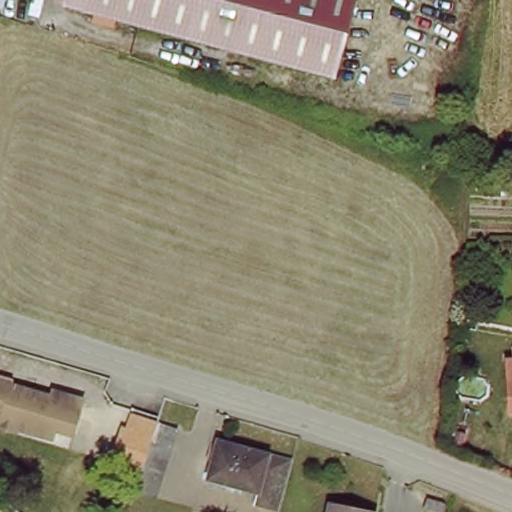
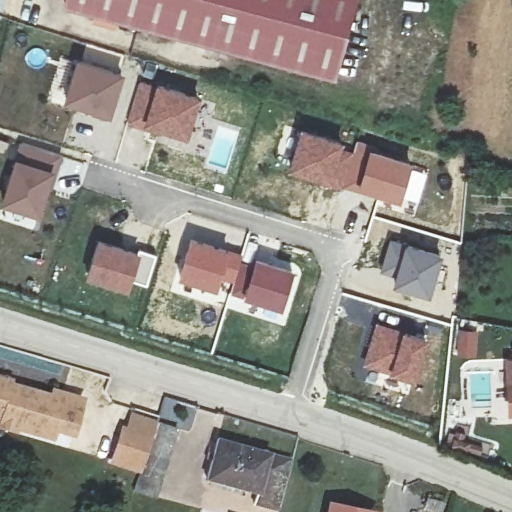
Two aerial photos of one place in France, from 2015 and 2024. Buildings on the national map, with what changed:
unchanged [(325,81),(65,5),(67,0),(349,0),(325,81)]
new [(76,57),(124,71),(108,118),(63,101),(76,57)]
new [(138,78),(199,95),(186,139),(125,124),(138,78)]
new [(300,127),(343,140),(341,145),(353,149),(356,140),(410,160),(400,200),(334,185),(286,171),(300,127)]
new [(19,140),(63,155),(53,189),(40,216),(0,203),(19,140)]
new [(190,236),(242,252),(240,259),(233,282),(218,277),(215,288),(178,278),(190,236)]
new [(389,236),(442,252),(433,296),(391,284),(393,276),(379,272),(389,236)]
new [(98,237),(155,254),(145,285),(129,280),(125,290),(85,277),(98,237)]
new [(233,282),(240,259),(253,262),(255,256),(292,267),(280,307),(230,293),(233,282)]
new [(375,321),(429,336),(416,380),(362,365),(375,321)]
new [(459,328),(480,331),(477,357),(455,355),(459,328)]
demolished [(104,397),(68,386),(75,358),(113,371),(104,397)]
unchanged [(509,416),(505,358),(512,358),(512,416),(509,416)]
unchanged [(4,413),(0,412),(0,374),(14,378),(13,380),(53,391),(55,385),(84,393),(75,426),(56,421),(56,424),(48,428),(18,420),(16,424),(2,420),(4,413)]
unchanged [(127,433),(131,420),(155,428),(138,470),(115,463),(127,433)]
demolished [(166,436),(171,423),(193,431),(177,473),(155,466),(166,436)]
unchanged [(215,434),(265,451),(293,461),(275,511),(248,501),(251,494),(201,477),(215,434)]
unchanged [(376,507),(375,512),(326,512),(329,498),(376,507)]

